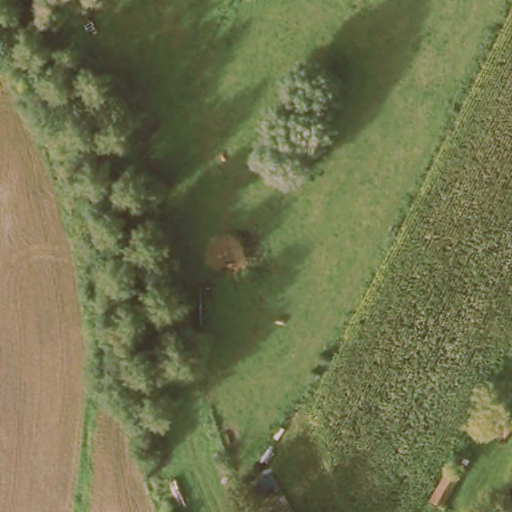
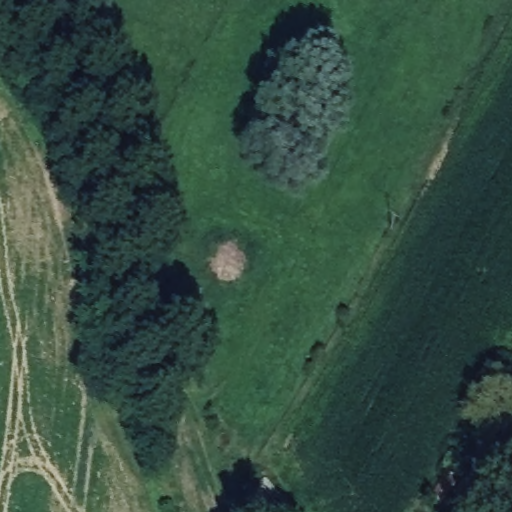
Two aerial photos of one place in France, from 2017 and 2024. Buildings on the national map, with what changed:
unchanged [(450,482),(438,506),(428,501),(441,477),(450,482)]

